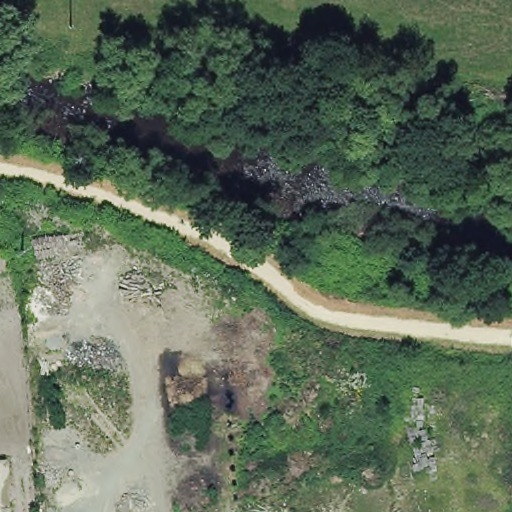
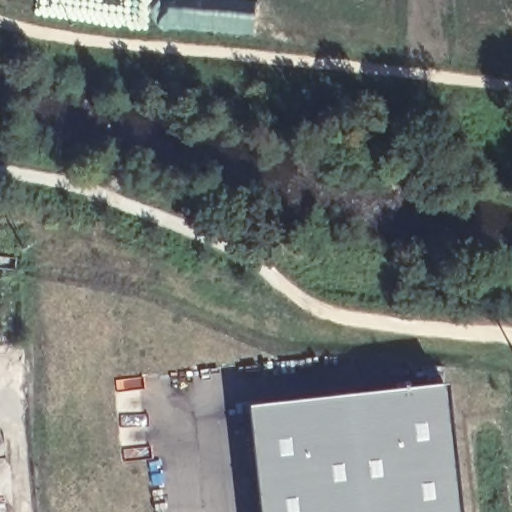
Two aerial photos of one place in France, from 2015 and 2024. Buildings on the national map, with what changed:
new [(442,386),(455,512),(253,512),(242,408),(442,386)]

